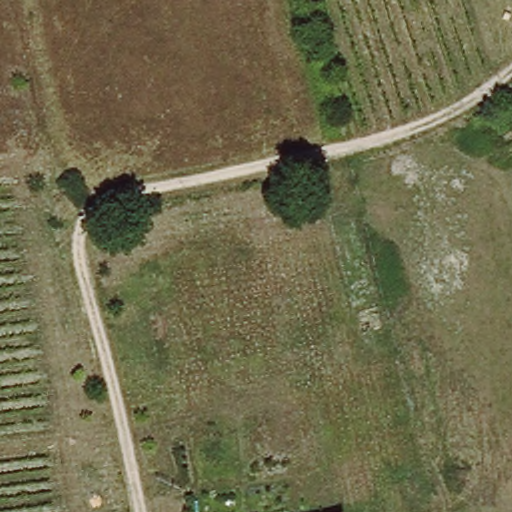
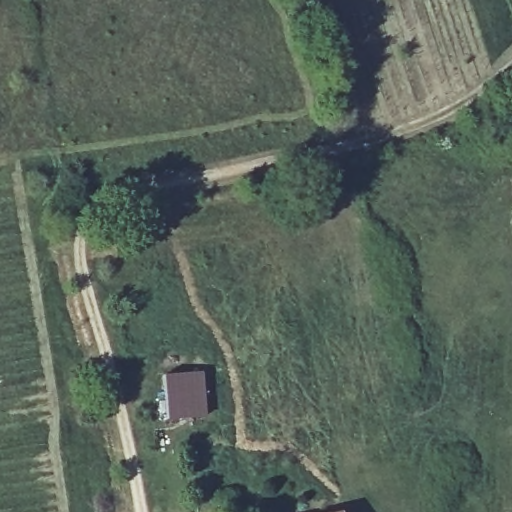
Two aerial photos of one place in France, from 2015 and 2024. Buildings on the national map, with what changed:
new [(203,371),(206,417),(166,420),(162,374),(203,371)]
unchanged [(340,512),(334,512),(340,511),(340,512)]

